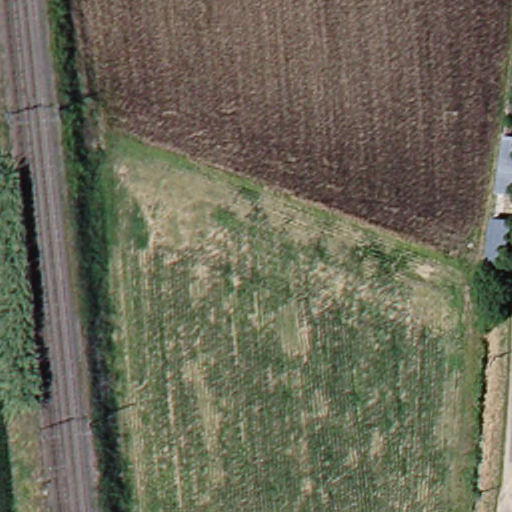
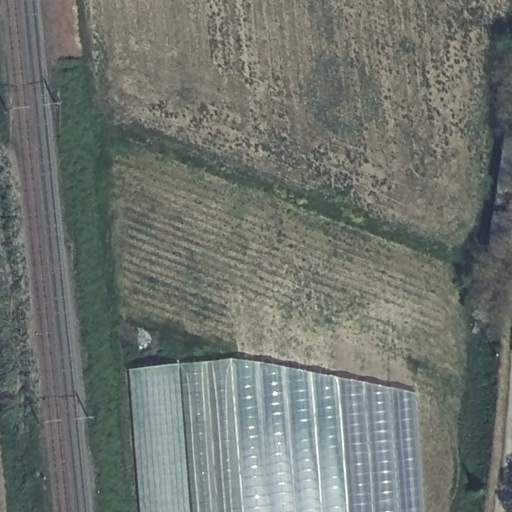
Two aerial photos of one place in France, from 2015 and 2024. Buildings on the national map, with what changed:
new [(230,359),(415,394),(423,512),(140,512),(128,370),(230,359)]

